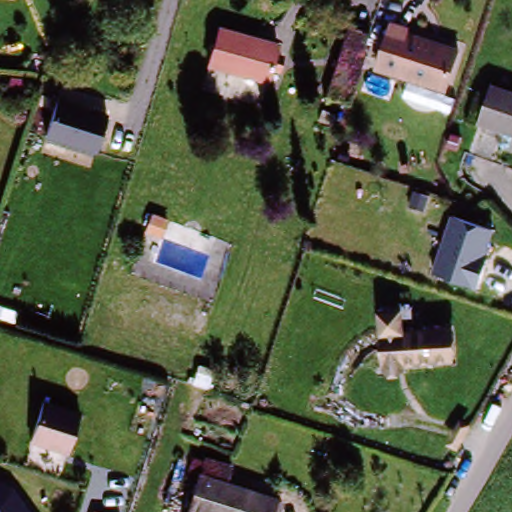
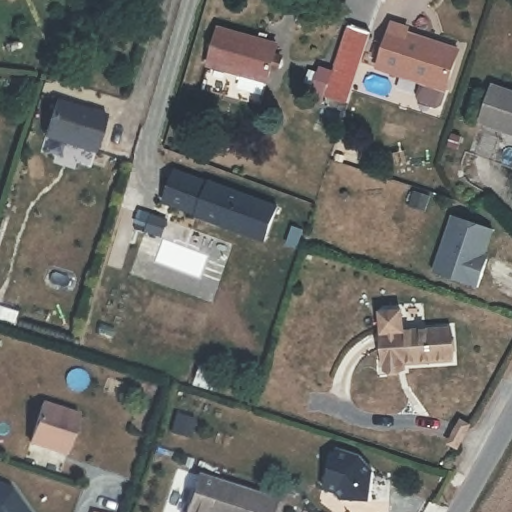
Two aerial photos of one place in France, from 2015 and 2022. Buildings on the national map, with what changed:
unchanged [(445,95),(376,72),(391,24),(410,30),(408,35),(459,52),(445,95)]
unchanged [(274,45),(265,81),(206,65),(216,29),(274,45)]
unchanged [(323,98),(348,29),(370,36),(346,106),(323,98)]
unchanged [(512,137),(477,122),(491,87),(512,95),(512,137)]
unchanged [(95,154),(46,138),(57,100),(106,116),(95,154)]
new [(171,166),(205,178),(205,177),(273,201),(260,235),(192,210),(192,209),(160,197),(171,166)]
unchanged [(494,230),(485,254),(489,255),(477,288),(434,272),(451,217),(494,230)]
unchanged [(18,308),(14,322),(0,317),(0,302),(18,308)]
unchanged [(402,310),(405,332),(381,333),(378,312),(402,310)]
unchanged [(438,364),(405,367),(405,372),(384,373),(381,333),(451,329),(452,353),(453,363),(438,364)]
unchanged [(39,408),(76,420),(64,462),(27,451),(39,408)]
unchanged [(206,484),(214,462),(240,472),(231,493),(272,507),(270,512),(196,512),(206,484)]
unchanged [(17,492),(30,512),(0,512),(0,484),(17,492)]

